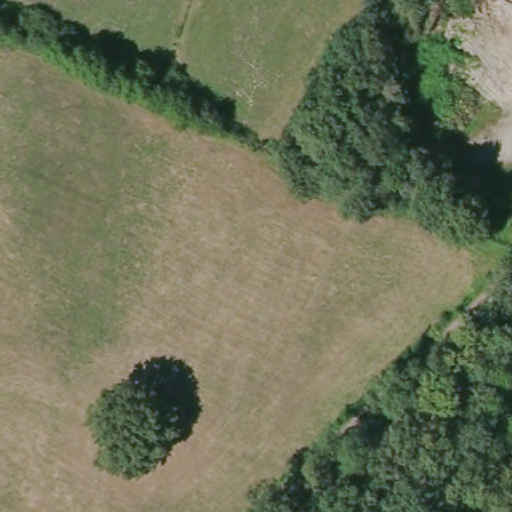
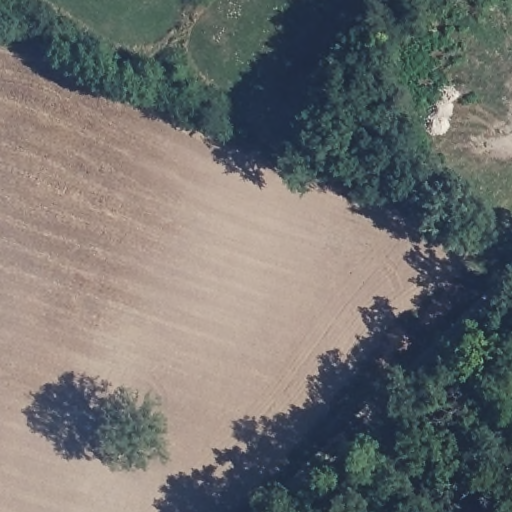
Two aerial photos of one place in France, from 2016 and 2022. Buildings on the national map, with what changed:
unchanged [(153,411),(168,412),(167,425),(152,425),(153,411)]

